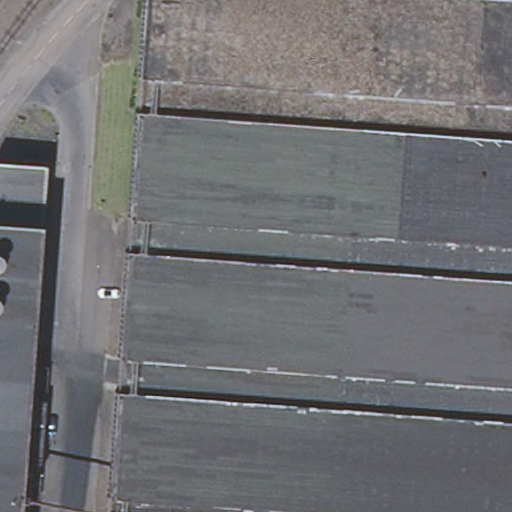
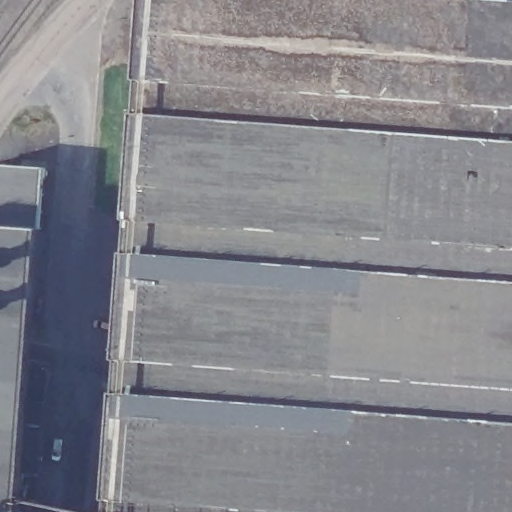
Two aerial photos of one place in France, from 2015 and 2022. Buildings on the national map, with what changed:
unchanged [(116,347),(124,239),(126,237),(128,210),(126,203),(135,104),(138,101),(145,0),(512,0),(512,512),(106,512),(118,350),(116,347)]
unchanged [(44,174),(40,235),(28,380),(39,381),(31,470),(22,469),(19,512),(0,512),(0,171),(44,174)]

